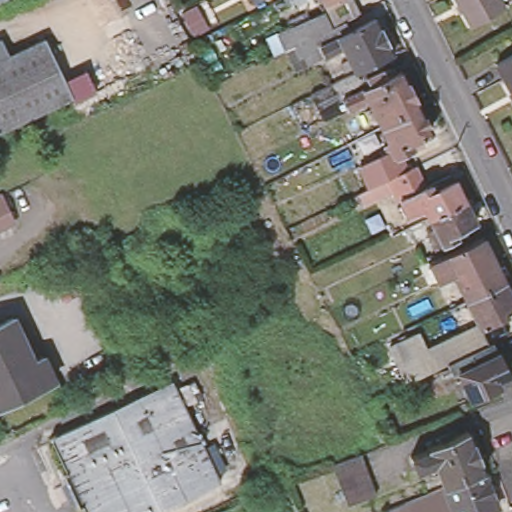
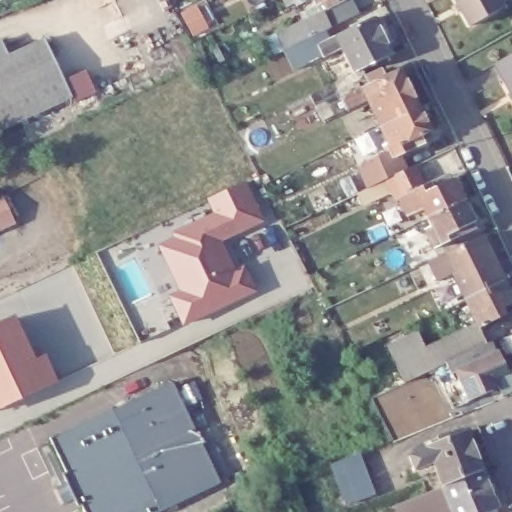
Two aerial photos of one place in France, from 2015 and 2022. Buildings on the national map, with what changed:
unchanged [(355,11),(359,9),(363,18),(372,14),(390,49),(360,63),(365,75),(380,69),(382,74),(398,67),(416,104),(376,124),(363,96),(342,105),(337,95),(329,78),(351,67),(339,44),(320,52),(317,49),(302,57),(294,40),(310,32),(312,32),(305,16),(318,10),(325,1),(324,0),(349,0),(355,11)]
unchanged [(460,0),(500,0),(471,17),(460,0)]
unchanged [(40,35),(67,94),(0,126),(0,54),(4,52),(40,35)]
unchanged [(0,54),(0,43),(4,52),(0,54)]
unchanged [(490,60),(512,46),(512,95),(490,60)]
unchanged [(452,176),(462,197),(425,215),(420,206),(405,212),(397,195),(406,191),(404,187),(392,192),(390,187),(358,200),(353,189),(365,184),(355,161),(382,147),(380,142),(385,140),(376,124),(416,104),(428,127),(417,132),(420,140),(397,150),(405,165),(411,162),(422,183),(437,176),(440,181),(452,176)]
new [(265,221),(222,241),(235,268),(245,264),(257,292),(183,327),(168,296),(179,291),(157,244),(173,237),(171,231),(213,212),(206,198),(245,181),(265,221)]
unchanged [(462,197),(473,218),(462,224),(465,229),(431,244),(422,226),(428,222),(425,215),(462,197)]
unchanged [(387,232),(383,222),(397,216),(401,225),(387,232)]
unchanged [(480,232),(492,257),(480,262),(477,256),(450,270),(435,277),(425,257),(480,232)]
unchanged [(462,295),(450,270),(477,256),(480,262),(492,257),(501,277),(462,295)]
unchanged [(462,295),(501,277),(512,298),(510,300),(512,307),(476,323),(475,320),(462,295)]
unchanged [(11,310),(32,353),(41,349),(55,375),(0,400),(0,315),(10,310),(11,310)]
unchanged [(505,371),(502,372),(505,379),(496,383),(466,397),(453,369),(448,372),(442,360),(401,378),(385,342),(413,330),(421,344),(475,320),(476,323),(485,341),(488,338),(493,350),(495,349),(505,371)]
unchanged [(170,378),(217,481),(150,512),(84,512),(50,433),(170,378)]
unchanged [(478,460),(428,475),(425,461),(405,467),(403,447),(465,418),(478,460)]
unchanged [(345,502),(340,491),(335,477),(331,466),(358,456),(363,467),(368,481),(372,492),(345,502)]
unchanged [(473,512),(408,512),(401,495),(480,466),(497,503),(473,512)]

